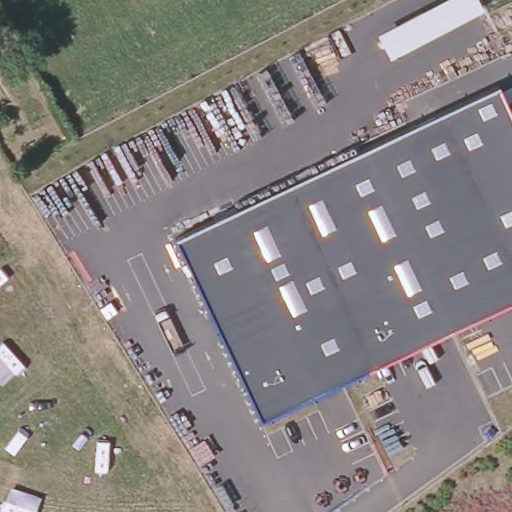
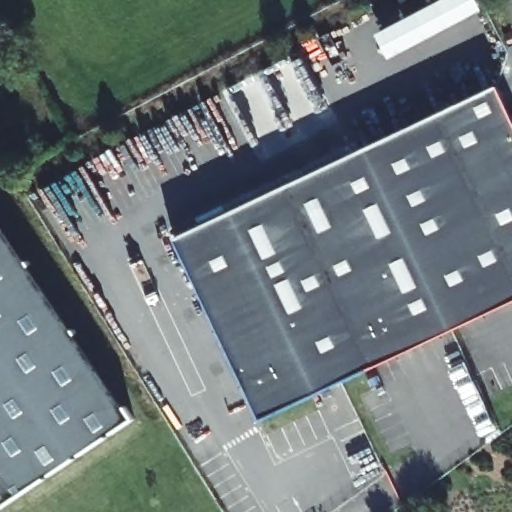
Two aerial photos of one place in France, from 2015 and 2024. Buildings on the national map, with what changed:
unchanged [(512,117),(512,300),(257,420),(172,237),(497,85),(512,117)]
new [(0,508),(0,248),(130,427),(0,508)]

